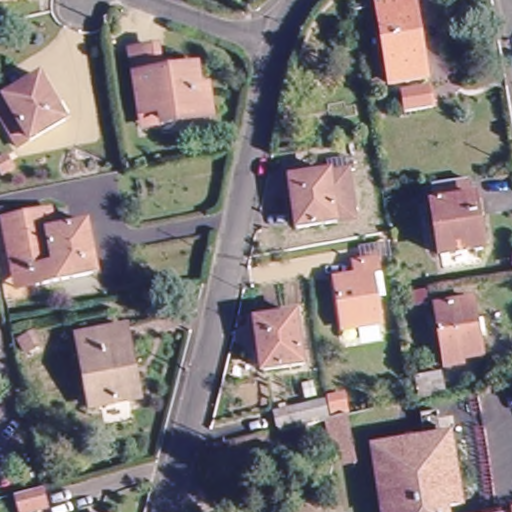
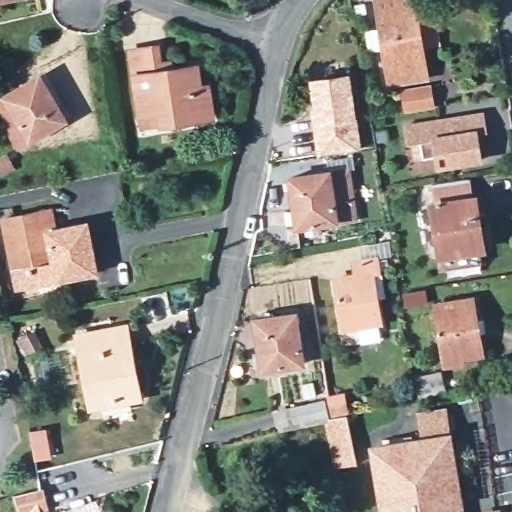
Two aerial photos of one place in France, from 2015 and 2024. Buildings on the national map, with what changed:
unchanged [(421,71),(385,77),(373,0),(410,0),(421,71)]
unchanged [(195,84),(202,83),(207,111),(138,121),(126,45),(149,42),(151,61),(165,59),(166,67),(191,63),(195,84)]
unchanged [(60,115),(13,143),(1,123),(0,121),(0,92),(35,71),(60,115)]
new [(358,119),(362,149),(318,154),(315,124),(309,80),(350,74),(358,119)]
unchanged [(423,81),(426,102),(400,106),(396,85),(423,81)]
new [(483,110),(486,131),(478,131),(483,160),(437,168),(435,156),(422,158),(420,140),(408,142),(403,121),(483,110)]
unchanged [(14,169),(2,175),(0,172),(0,159),(6,156),(14,169)]
unchanged [(297,228),(290,178),(329,172),(327,162),(352,158),(354,169),(348,170),(355,220),(297,228)]
unchanged [(468,179),(471,199),(475,198),(483,249),(441,255),(433,204),(438,204),(435,184),(468,179)]
unchanged [(0,222),(0,220),(31,213),(46,210),(50,230),(82,223),(92,273),(32,285),(14,288),(11,275),(0,222)]
unchanged [(380,273),(372,274),(380,323),(343,329),(335,279),(356,276),(354,262),(361,261),(377,258),(380,273)]
unchanged [(472,295),(482,349),(461,353),(461,358),(446,361),(436,301),(472,295)]
unchanged [(296,314),(303,364),(262,370),(255,320),(296,314)]
unchanged [(125,327),(139,398),(91,407),(78,336),(125,327)]
unchanged [(440,367),(445,388),(445,389),(418,395),(415,373),(440,367)]
unchanged [(328,400),(344,398),(346,416),(356,462),(336,466),(327,421),(281,432),(276,411),(325,401),(329,420),(331,420),(328,400)]
unchanged [(45,506),(24,512),(19,512),(15,497),(40,489),(45,506)]

